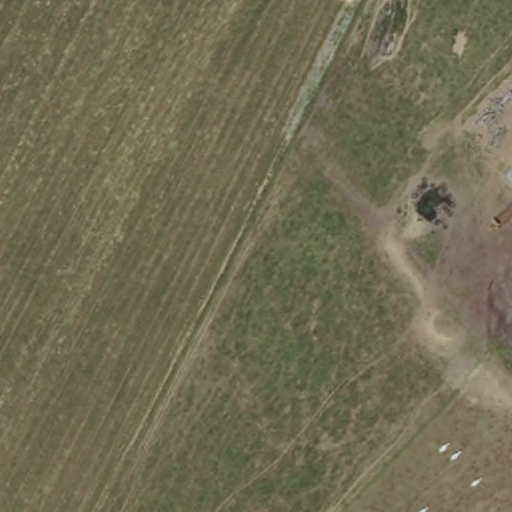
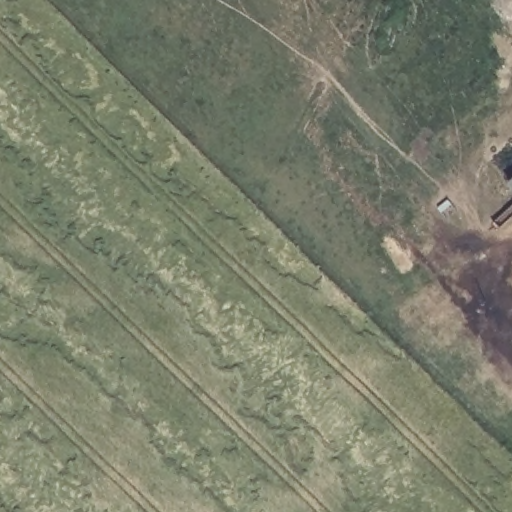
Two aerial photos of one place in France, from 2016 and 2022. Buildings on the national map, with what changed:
unchanged [(512,179),(512,185),(509,182),(512,179)]

